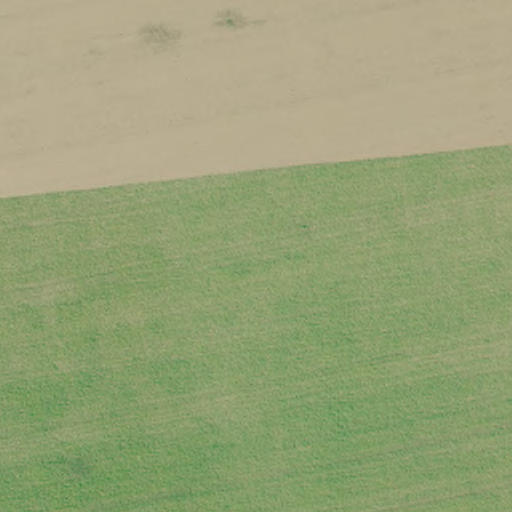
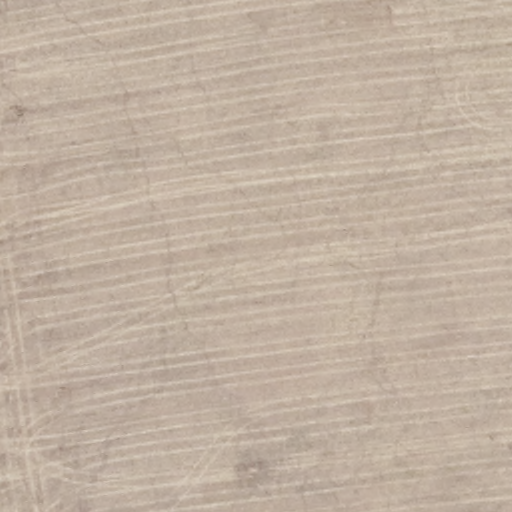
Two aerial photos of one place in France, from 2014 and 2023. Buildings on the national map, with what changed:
[]

